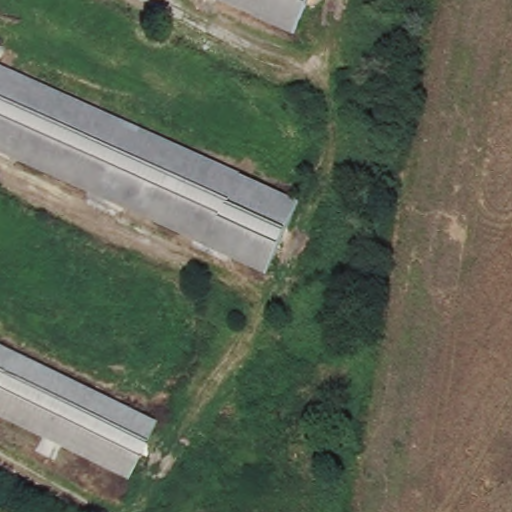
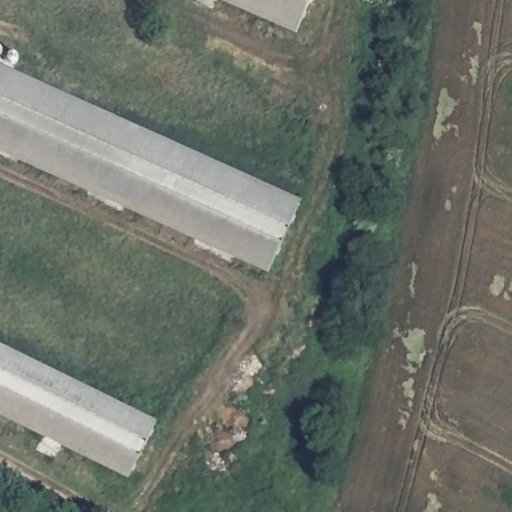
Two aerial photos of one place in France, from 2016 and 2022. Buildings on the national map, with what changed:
unchanged [(283,28),(222,0),(297,0),(283,28)]
unchanged [(122,121),(297,204),(265,273),(25,159),(0,148),(0,64),(122,121)]
unchanged [(155,420),(131,472),(0,407),(0,340),(155,420)]

